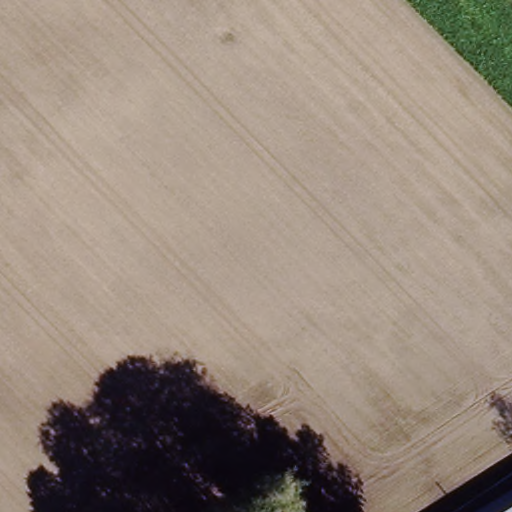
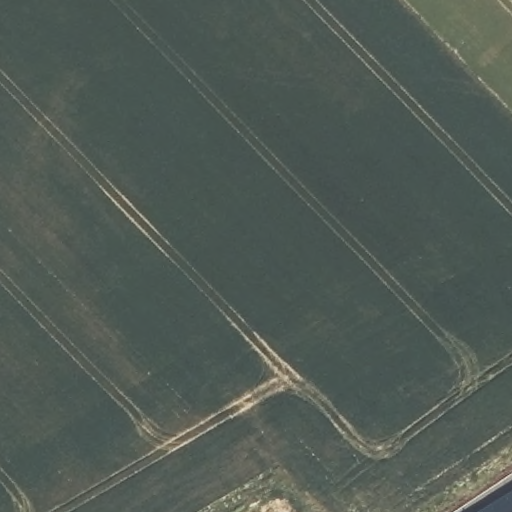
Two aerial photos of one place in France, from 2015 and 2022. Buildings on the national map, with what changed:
unchanged [(478,512),(512,491),(512,512),(478,512)]

